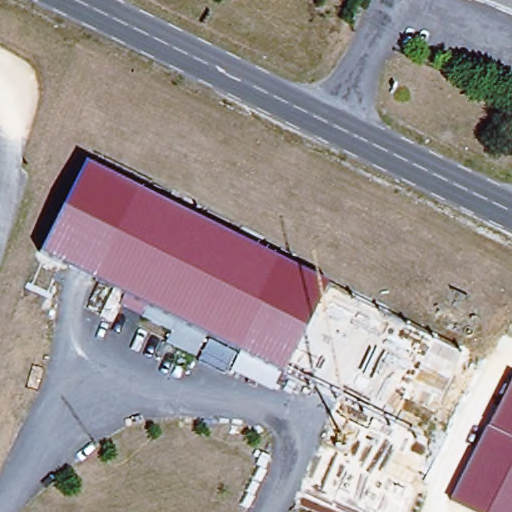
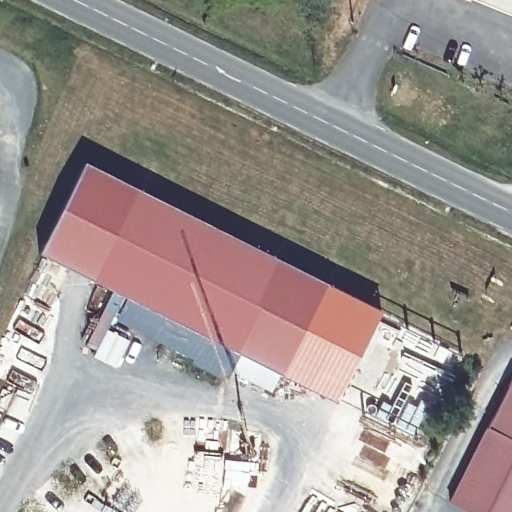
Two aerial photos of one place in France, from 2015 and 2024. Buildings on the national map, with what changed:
unchanged [(512,0),(512,8),(492,0),(512,0)]
unchanged [(33,252),(81,158),(135,187),(87,281),(33,252)]
unchanged [(274,258),(226,352),(202,340),(119,297),(87,281),(135,187),(274,258)]
unchanged [(281,380),(226,352),(274,258),(329,286),(281,380)]
new [(336,405),(281,380),(329,286),(383,312),(336,405)]
unchanged [(161,345),(167,334),(113,307),(119,297),(202,340),(191,361),(161,345)]
unchanged [(449,503),(512,378),(512,512),(467,512),(449,503)]

